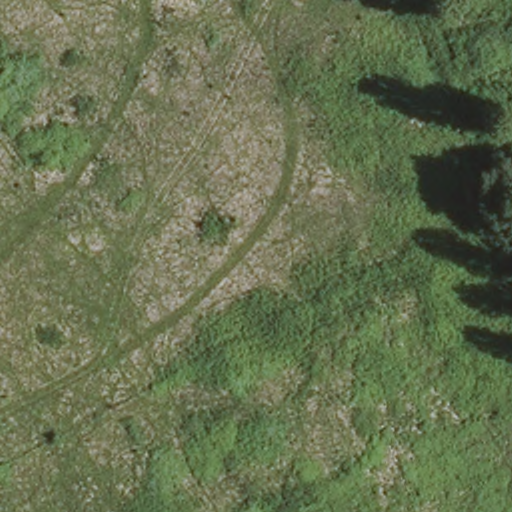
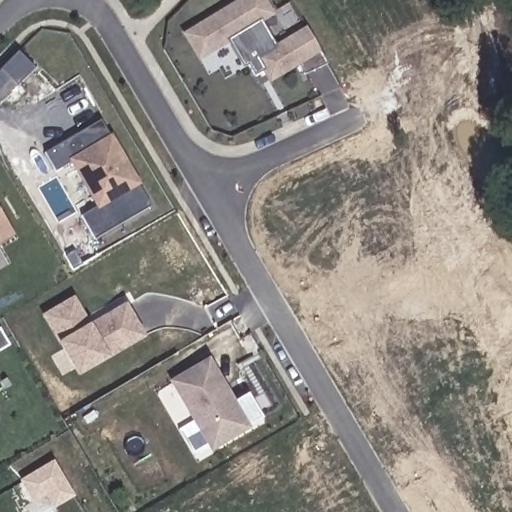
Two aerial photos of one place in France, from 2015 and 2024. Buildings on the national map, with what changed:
new [(299,67),(269,84),(267,81),(259,85),(247,64),(242,68),(229,44),(198,61),(182,34),(238,0),(266,0),(275,15),(264,23),(276,44),(306,25),(328,64),(304,75),(299,67)]
new [(96,239),(82,214),(96,206),(69,159),(71,158),(62,142),(102,119),(153,204),(96,239)]
new [(0,243),(0,207),(16,234),(0,243)]
new [(109,359),(78,376),(58,343),(42,315),(75,296),(91,323),(127,303),(146,336),(109,359)]
new [(212,451),(170,380),(210,357),(251,428),(212,451)]

